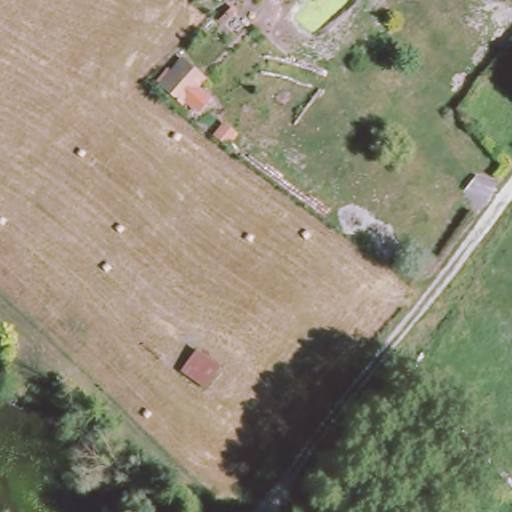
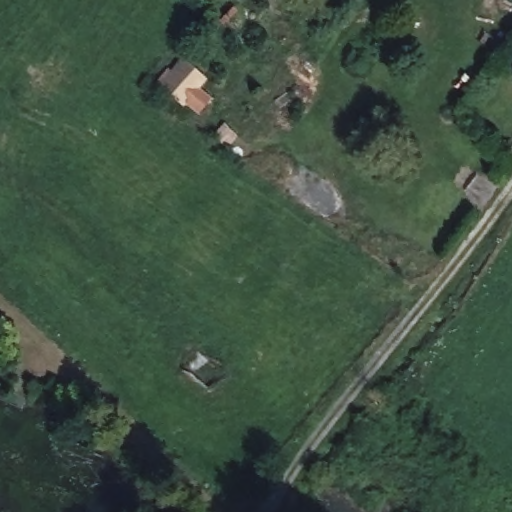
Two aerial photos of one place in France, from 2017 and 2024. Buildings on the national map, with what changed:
unchanged [(177,61),(202,76),(183,109),(155,92),(177,61)]
unchanged [(225,374),(204,397),(175,374),(196,350),(225,374)]

